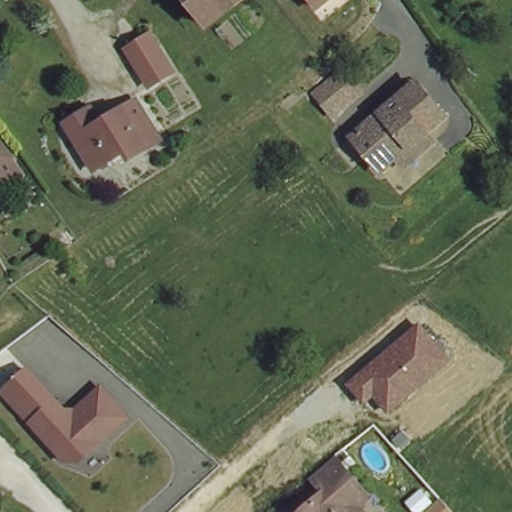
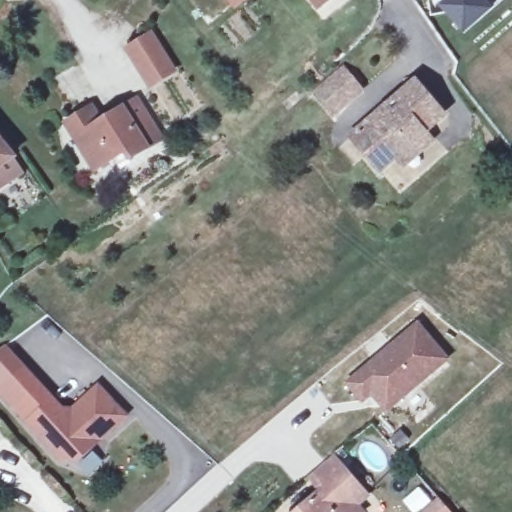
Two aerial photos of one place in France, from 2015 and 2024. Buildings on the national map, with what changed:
unchanged [(208,21),(190,0),(235,0),(208,21)]
new [(319,16),(306,0),(339,0),(319,16)]
new [(440,0),(483,0),(491,9),(462,34),(436,4),(440,0)]
unchanged [(146,26),(172,60),(151,77),(124,43),(146,26)]
unchanged [(359,87),(331,111),(325,105),(313,91),(341,66),(353,80),(359,87)]
unchanged [(399,149),(386,161),(373,146),(366,152),(350,134),(418,75),(446,108),(424,126),(433,137),(422,146),(408,159),(399,149)]
unchanged [(106,174),(66,123),(89,105),(100,118),(133,93),(162,131),(106,174)]
unchanged [(0,178),(0,140),(18,164),(0,178)]
unchanged [(418,322),(452,359),(386,414),(371,399),(364,406),(343,384),(418,322)]
unchanged [(60,406),(71,403),(96,379),(123,408),(88,442),(77,442),(76,452),(61,452),(0,387),(0,382),(23,363),(60,406)]
unchanged [(328,494),(311,475),(334,457),(371,496),(359,507),(364,512),(298,512),(314,499),(328,494)]
unchanged [(416,512),(416,511),(431,497),(445,512),(416,512)]

